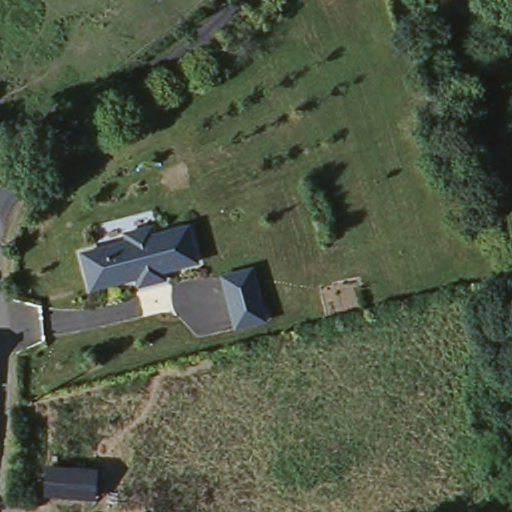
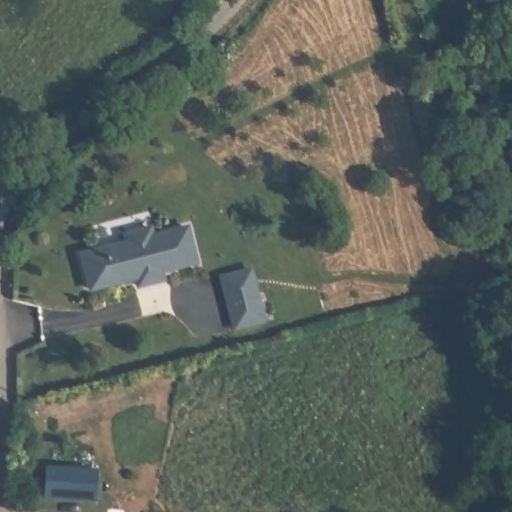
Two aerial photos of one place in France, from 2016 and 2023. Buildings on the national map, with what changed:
unchanged [(79,254),(124,242),(121,235),(150,226),(153,234),(189,225),(199,263),(166,273),(168,278),(138,286),(135,280),(88,293),(79,254)]
unchanged [(252,267),(269,323),(234,331),(219,275),(252,267)]
unchanged [(44,466),(97,469),(95,506),(83,507),(81,500),(43,496),(44,466)]

